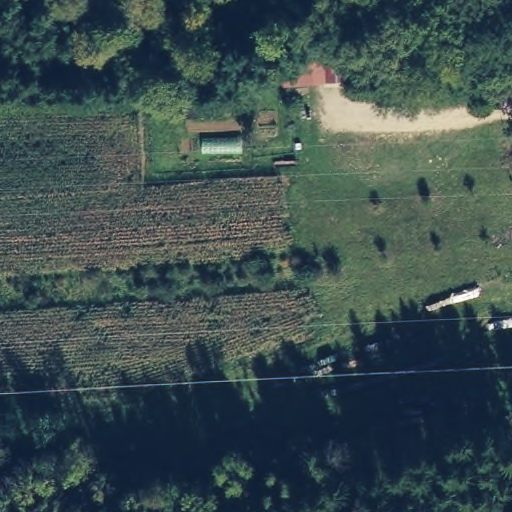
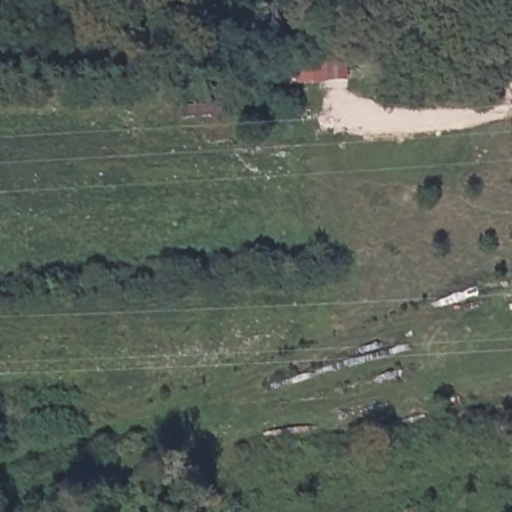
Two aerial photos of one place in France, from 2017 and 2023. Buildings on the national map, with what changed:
unchanged [(327,51),(327,80),(283,82),(281,55),(327,51)]

